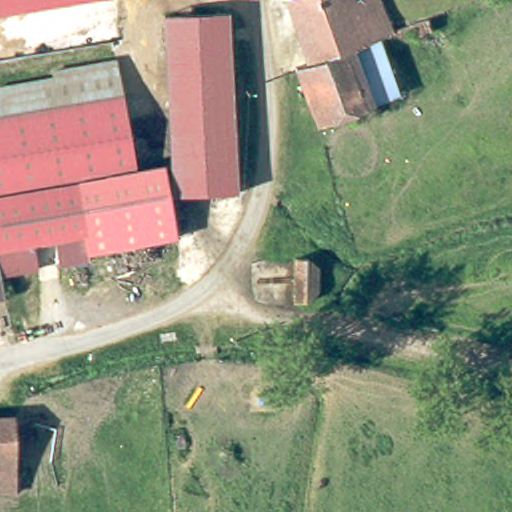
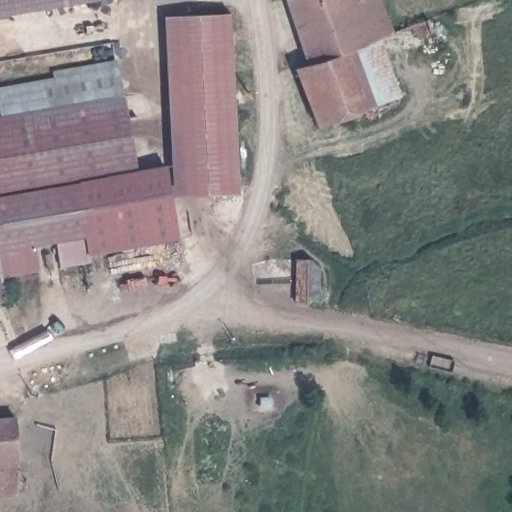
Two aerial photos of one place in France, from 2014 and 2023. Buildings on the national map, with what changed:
unchanged [(0,0),(86,0),(0,13),(0,0)]
unchanged [(294,2),(300,0),(356,0),(358,6),(369,4),(381,0),(383,0),(389,16),(396,37),(385,41),(358,51),(316,66),(294,2)]
unchanged [(181,196),(172,15),(235,12),(242,90),(245,161),(246,194),(240,194),(181,196)]
unchanged [(358,51),(385,41),(407,100),(392,105),(380,110),(358,51)]
unchanged [(380,110),(370,114),(324,130),(303,71),(316,66),(358,51),(380,110)]
unchanged [(4,86),(60,78),(59,70),(120,60),(127,97),(105,101),(8,117),(4,86)]
unchanged [(89,225),(94,254),(96,254),(97,261),(68,266),(63,241),(42,245),(46,270),(10,276),(13,301),(1,303),(0,300),(0,118),(8,117),(105,101),(127,97),(130,97),(142,174),(82,185),(89,225)]
unchanged [(171,169),(183,239),(96,254),(94,254),(89,225),(82,185),(142,174),(171,169)]
unchanged [(320,291),(310,302),(298,302),(296,261),(307,261),(320,270),(320,291)]
unchanged [(21,448),(21,455),(5,456),(0,456),(0,418),(21,416),(21,429),(21,448)]
unchanged [(0,492),(0,456),(5,456),(21,455),(23,490),(0,492)]

